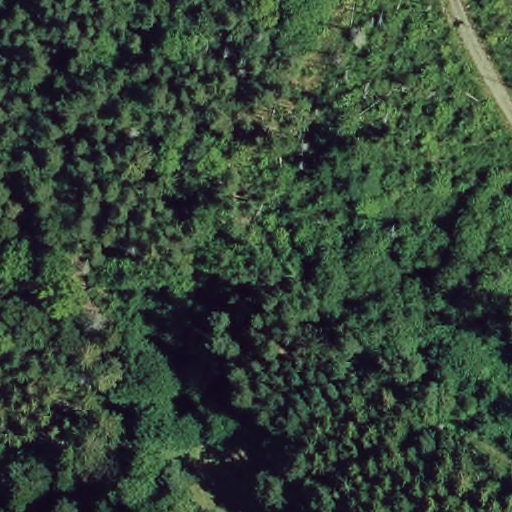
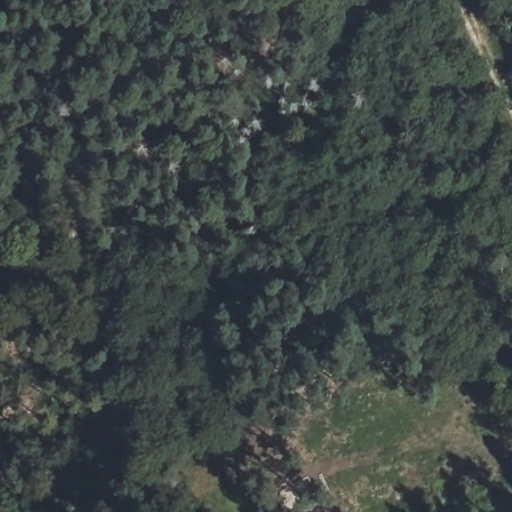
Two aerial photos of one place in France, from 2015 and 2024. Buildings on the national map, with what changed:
unchanged [(302,512),(284,512),(264,482),(294,455),(323,498),(302,512)]

